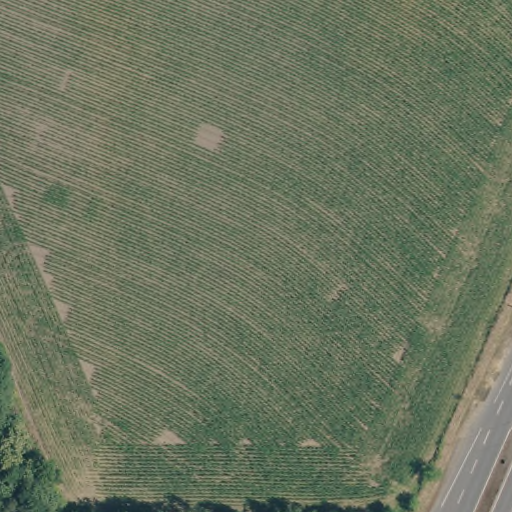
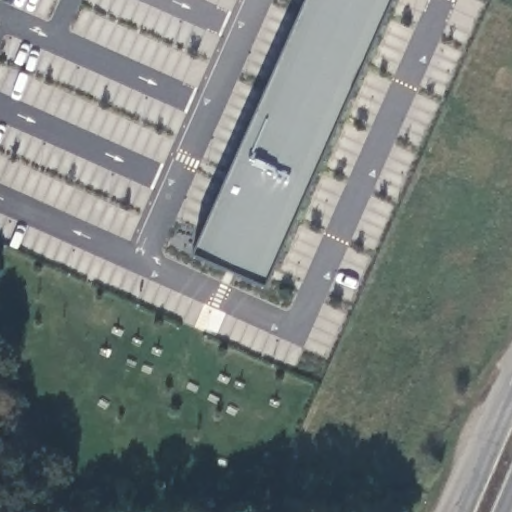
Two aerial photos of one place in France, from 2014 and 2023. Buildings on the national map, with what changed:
new [(192,257),(306,0),(392,0),(263,289),(192,257)]

